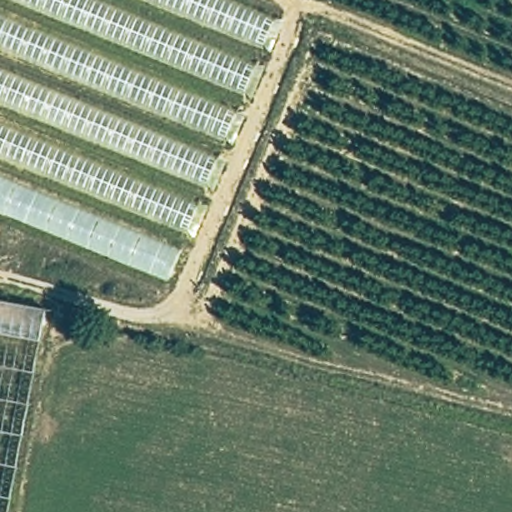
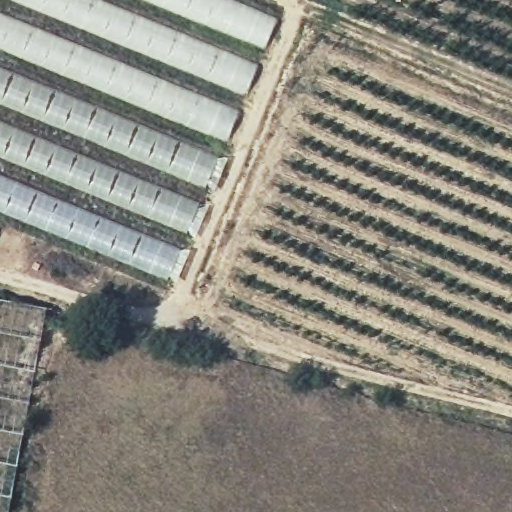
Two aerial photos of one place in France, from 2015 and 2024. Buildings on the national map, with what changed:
unchanged [(273,17),(167,283),(0,218),(0,0),(232,0),(273,17)]
unchanged [(43,311),(7,512),(0,512),(0,303),(43,311)]

